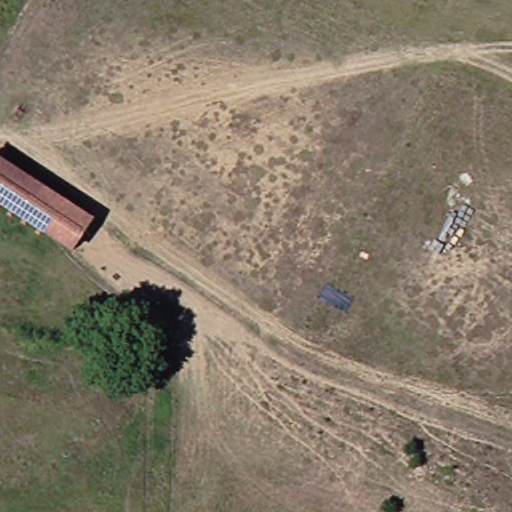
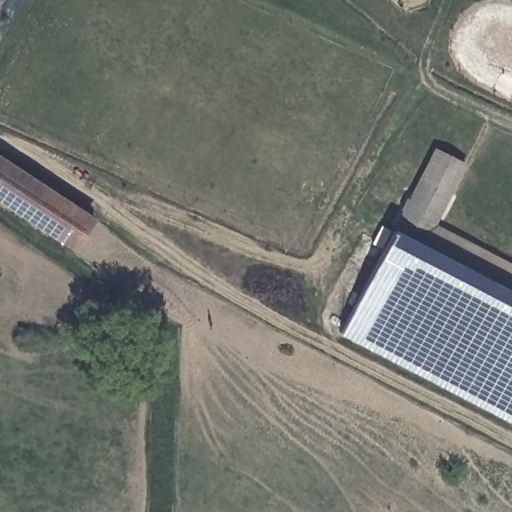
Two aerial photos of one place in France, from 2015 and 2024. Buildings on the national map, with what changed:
unchanged [(0,0),(3,0),(0,6),(0,0)]
new [(468,164),(438,223),(512,262),(512,291),(397,232),(437,146),(468,164)]
unchanged [(0,154),(2,151),(100,219),(80,249),(0,190),(0,154)]
new [(512,291),(512,420),(344,332),(397,232),(512,291)]

